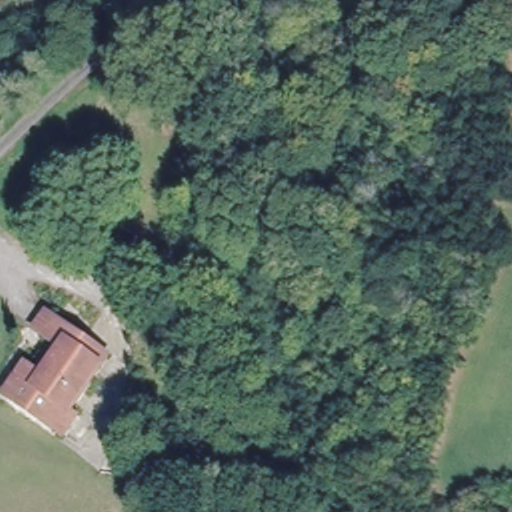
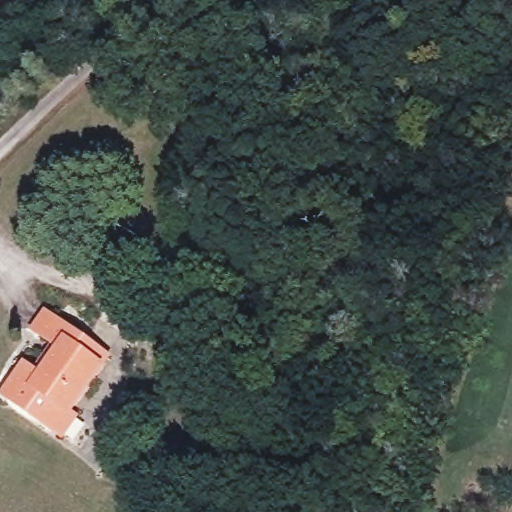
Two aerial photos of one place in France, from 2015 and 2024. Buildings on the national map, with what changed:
unchanged [(6,394),(25,366),(34,372),(53,344),(39,333),(50,317),(84,341),(104,355),(97,366),(73,400),(84,407),(64,436),(53,428),(6,394)]

